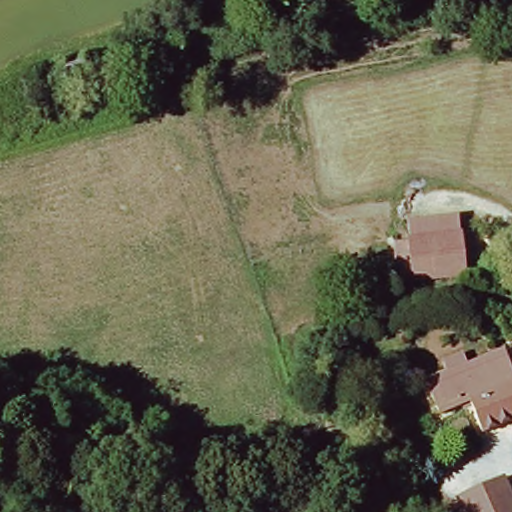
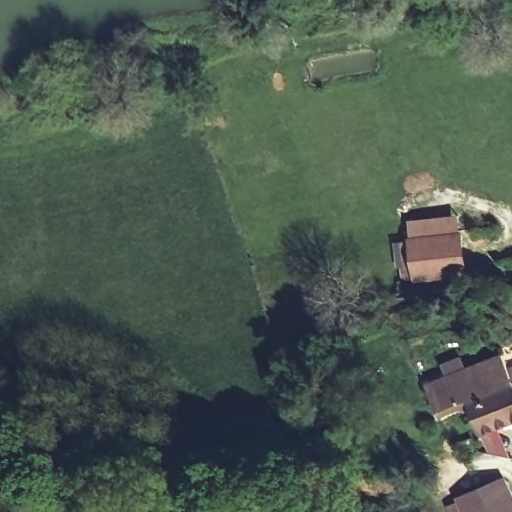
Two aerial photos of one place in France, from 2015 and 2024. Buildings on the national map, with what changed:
unchanged [(406,281),(405,269),(400,270),(397,243),(415,241),(412,221),(459,214),(462,233),(469,271),(406,281)]
unchanged [(485,360),(512,347),(512,421),(482,436),(467,405),(438,419),(434,409),(497,388),(485,360)]
unchanged [(434,409),(425,387),(485,360),(497,388),(434,409)]
unchanged [(445,510),(455,506),(454,502),(500,480),(512,508),(512,512),(446,512),(445,510)]

